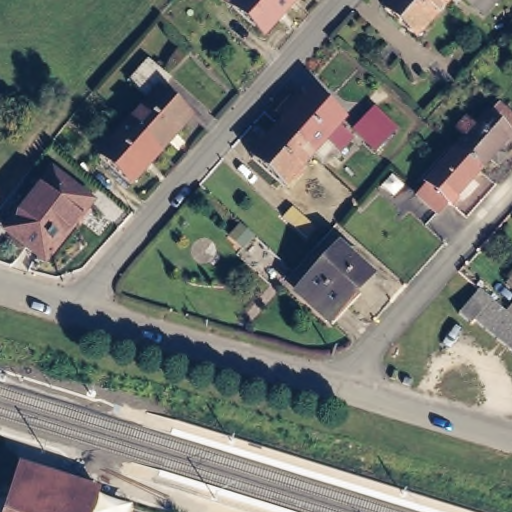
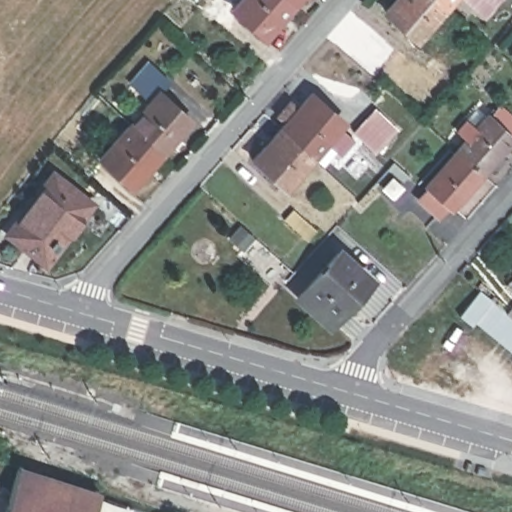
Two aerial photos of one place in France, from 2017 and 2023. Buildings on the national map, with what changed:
unchanged [(230,0),(297,0),(302,4),(272,38),(230,0)]
unchanged [(305,0),(302,4),(297,0),(305,0)]
unchanged [(415,39),(384,12),(395,0),(439,0),(445,5),(415,39)]
unchanged [(439,0),(450,0),(445,5),(439,0)]
unchanged [(463,0),(474,0),(469,5),(463,0)]
unchanged [(134,130),(154,107),(132,87),(150,67),(172,86),(162,99),(194,127),(165,159),(134,130)]
unchanged [(310,95),(342,124),(339,128),(353,140),(340,157),(333,153),(324,164),(315,155),(282,127),(310,95)]
unchanged [(472,139),(462,131),(470,121),(480,129),(492,115),(495,118),(505,107),(512,113),(512,141),(485,171),(462,150),(472,139)]
unchanged [(387,136),(375,150),(355,131),(367,118),(387,136)]
unchanged [(315,155),(284,189),(252,162),(282,127),(315,155)]
unchanged [(136,191),(105,165),(107,162),(92,150),(106,134),(120,146),(134,130),(165,159),(136,191)]
unchanged [(455,206),(450,203),(441,212),(423,197),(432,187),(430,185),(462,150),(485,171),(455,206)]
unchanged [(95,204),(74,230),(67,225),(42,258),(9,234),(55,174),(95,204)]
unchanged [(360,280),(322,324),(292,296),(330,253),(360,280)]
unchanged [(512,273),(512,292),(504,285),(512,273)]
unchanged [(512,316),(512,354),(472,320),(470,322),(457,310),(479,286),(507,311),(512,316)]
unchanged [(512,306),(512,316),(507,311),(512,306)]
unchanged [(98,499),(94,512),(6,512),(18,473),(98,499)]

